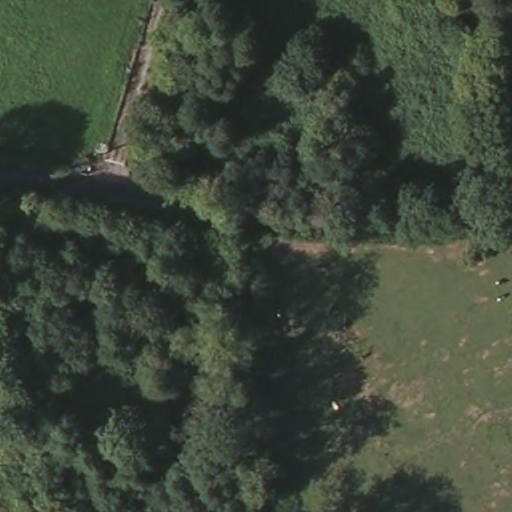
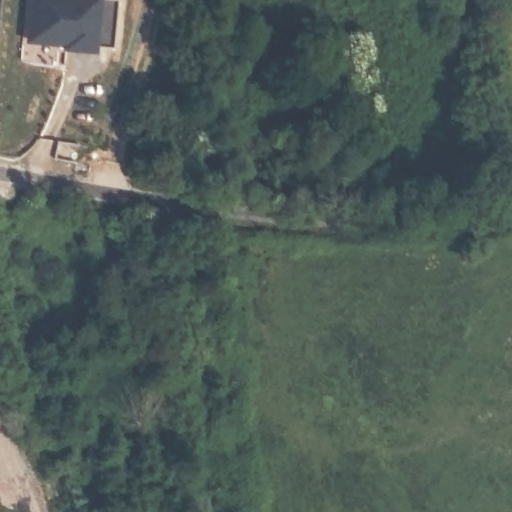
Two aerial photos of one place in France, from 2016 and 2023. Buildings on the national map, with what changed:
new [(111,42),(26,40),(25,0),(113,0),(111,42)]

